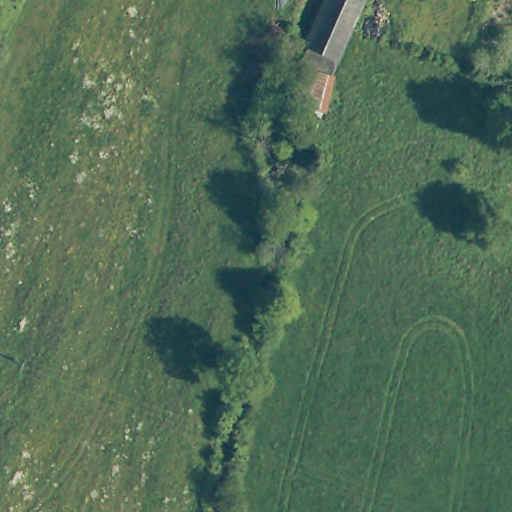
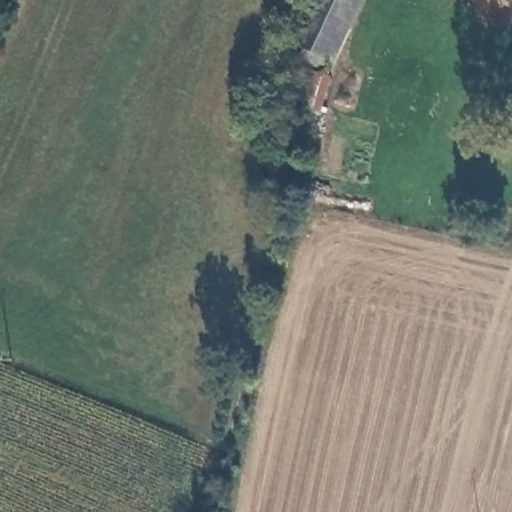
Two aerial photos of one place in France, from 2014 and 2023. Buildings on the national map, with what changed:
unchanged [(345,61),(306,46),(325,0),(369,0),(345,61)]
unchanged [(341,122),(331,141),(322,149),(309,144),(321,115),(341,122)]

